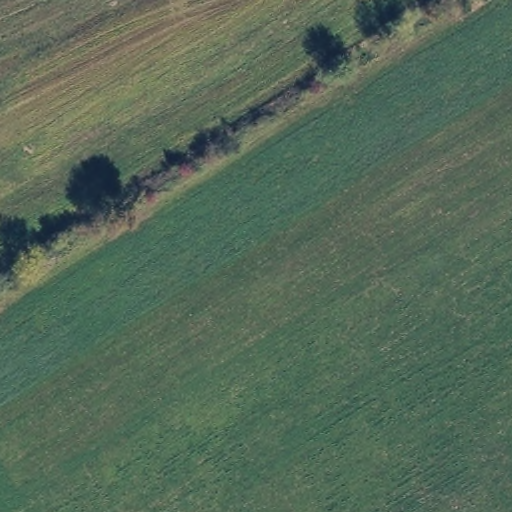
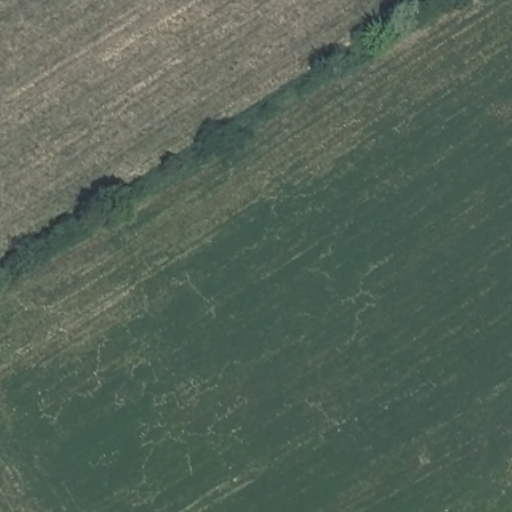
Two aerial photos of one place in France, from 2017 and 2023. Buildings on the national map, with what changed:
[]

